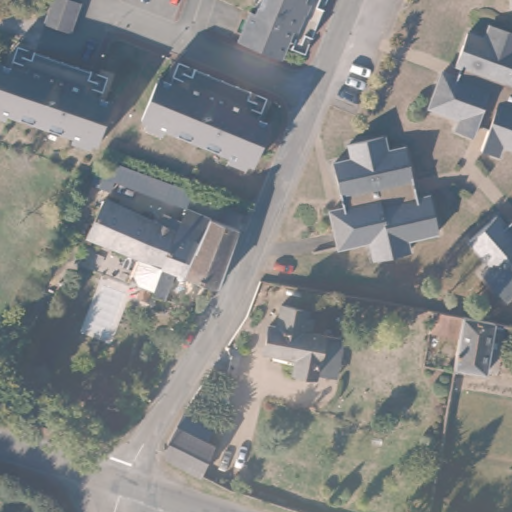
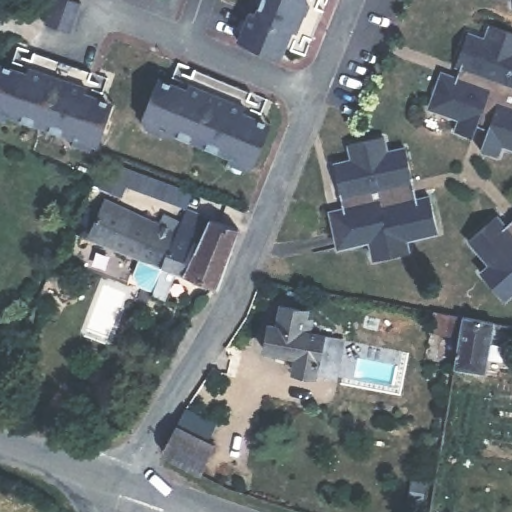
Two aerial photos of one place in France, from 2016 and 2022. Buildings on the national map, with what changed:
unchanged [(80,0),(69,30),(44,21),(51,0),(78,0),(80,0)]
unchanged [(227,41),(239,13),(245,15),(251,0),(317,0),(313,7),(308,5),(305,12),(311,14),(300,39),(295,37),(292,44),(297,46),(292,55),(276,48),(270,60),(263,57),(227,41)]
unchanged [(508,0),(512,0),(512,10),(510,10),(508,0)]
unchanged [(512,162),(496,156),(492,170),(476,165),(483,142),(472,139),(469,149),(450,143),(453,131),(423,122),(436,87),(452,92),(456,81),(450,79),(461,48),(479,54),(484,39),(512,49),(512,162)]
unchanged [(72,158),(74,152),(67,150),(10,130),(5,128),(3,133),(0,132),(0,80),(10,83),(18,61),(26,64),(24,69),(32,72),(35,67),(89,86),(87,91),(94,93),(96,88),(104,91),(96,112),(110,117),(108,123),(95,160),(87,157),(86,163),(72,158)]
unchanged [(229,167),(231,161),(225,159),(168,135),(161,132),(159,138),(147,133),(149,127),(144,125),(157,89),(160,84),(174,88),(182,68),(190,71),(187,79),(194,81),(196,74),(251,96),(249,103),(256,105),(258,99),(267,103),(257,124),(269,129),(267,135),(252,170),(244,167),(242,172),(229,167)]
unchanged [(383,140),(387,155),(407,150),(418,203),(430,200),(438,237),(407,244),(410,256),(373,264),(369,244),(335,251),(327,214),(343,211),(334,167),(352,162),(350,148),(383,140)]
unchanged [(180,230),(169,273),(154,267),(150,277),(140,279),(116,269),(121,253),(88,240),(104,200),(180,230)]
unchanged [(237,235),(215,294),(169,273),(180,230),(184,215),(237,235)]
unchanged [(512,289),(501,298),(477,272),(485,265),(464,241),(493,215),(501,224),(512,215),(512,289)]
unchanged [(86,268),(81,284),(67,277),(72,263),(86,268)]
unchanged [(486,368),(451,363),(454,342),(426,336),(430,315),(458,319),(492,324),(486,368)]
unchanged [(292,326),(291,332),(299,333),(296,346),(309,348),(301,390),(280,386),(280,379),(257,375),(258,368),(249,365),(254,341),(263,342),(267,321),(292,326)]
unchanged [(216,426),(207,442),(217,446),(204,477),(162,459),(187,412),(216,426)]

